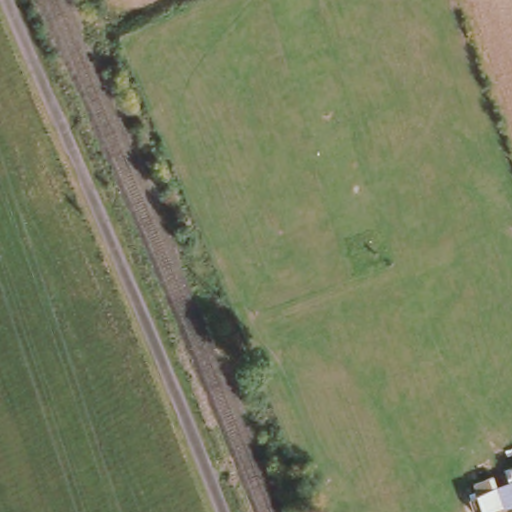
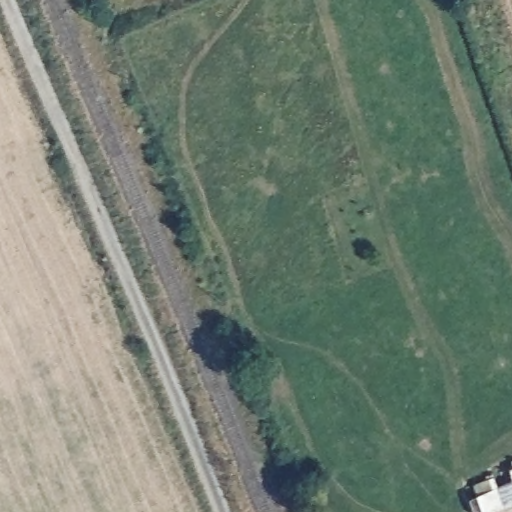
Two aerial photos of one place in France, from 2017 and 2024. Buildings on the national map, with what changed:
unchanged [(509,511),(505,512),(467,512),(462,500),(498,487),(509,511)]

